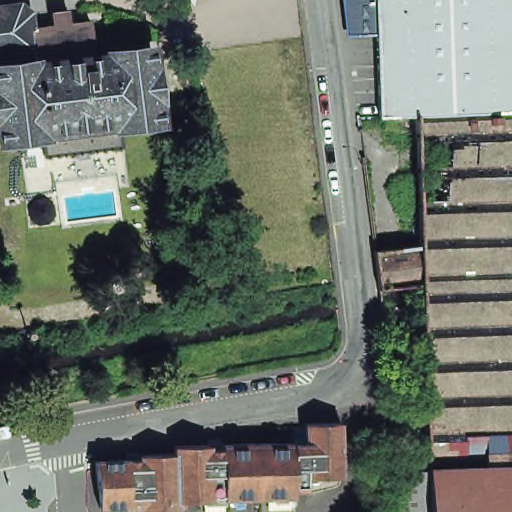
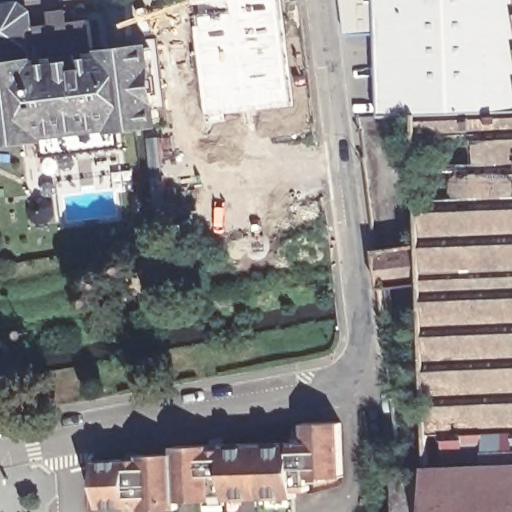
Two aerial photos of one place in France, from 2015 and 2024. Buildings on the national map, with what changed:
new [(294,106),(205,117),(190,14),(189,0),(281,0),(294,106)]
unchanged [(345,32),(349,30),(348,0),(374,0),(376,38),(349,40),(345,32)]
unchanged [(512,113),(507,114),(481,115),(456,116),(415,117),(414,121),(379,122),(376,38),(374,0),(512,0),(512,113)]
unchanged [(25,5),(35,12),(37,27),(95,19),(101,57),(114,56),(114,51),(155,46),(165,121),(125,126),(128,145),(50,155),(47,136),(5,141),(0,101),(0,8),(25,5)]
unchanged [(424,410),(420,288),(419,249),(414,121),(415,117),(456,116),(481,115),(507,114),(512,113),(512,512),(428,512),(426,462),(425,430),(412,430),(411,411),(424,410)]
unchanged [(420,288),(379,295),(373,255),(419,249),(420,288)]
unchanged [(95,487),(95,457),(137,457),(137,453),(170,452),(172,445),(206,443),(206,448),(219,447),(219,443),(287,441),(288,445),(300,445),(300,422),(333,422),(335,476),(302,477),(302,490),(289,491),(289,496),(265,497),(226,497),(220,497),(220,494),(207,495),(207,498),(202,499),(172,502),(172,507),(136,508),(136,505),(122,506),(95,506),(95,487)]
unchanged [(410,476),(410,462),(426,462),(428,512),(401,512),(400,477),(410,476)]

